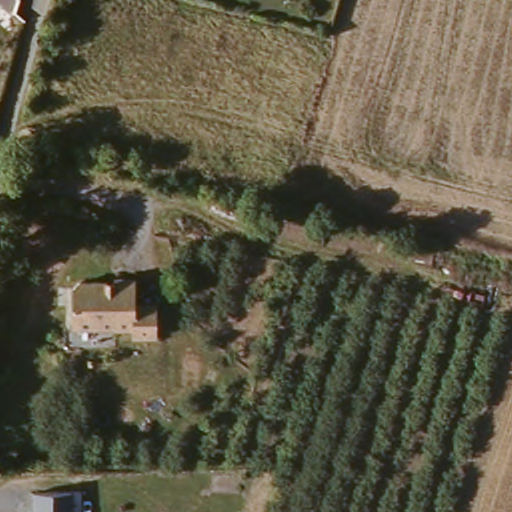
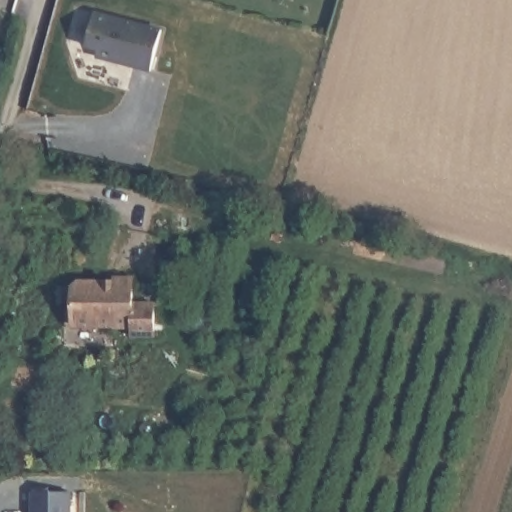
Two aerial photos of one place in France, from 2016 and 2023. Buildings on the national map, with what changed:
new [(97,60),(99,52),(88,49),(96,13),(163,30),(152,74),(97,60)]
unchanged [(115,282),(115,280),(136,278),(135,302),(155,303),(156,341),(132,342),(131,330),(72,331),(74,284),(115,282)]
unchanged [(32,492),(71,493),(71,512),(33,512),(32,492)]

